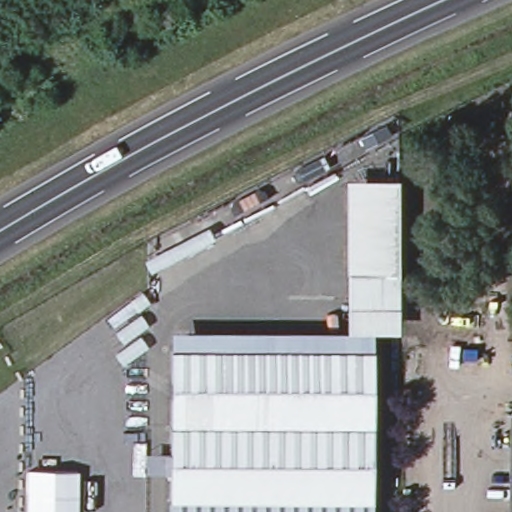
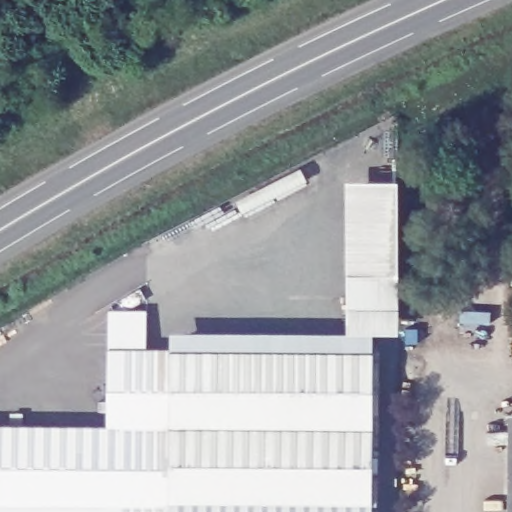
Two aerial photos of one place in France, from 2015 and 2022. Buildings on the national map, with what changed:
unchanged [(169,345),(170,328),(347,329),(347,181),(400,181),(401,333),(374,334),(372,346),(169,345)]
new [(106,426),(108,347),(108,310),(145,310),(147,350),(168,350),(168,512),(0,512),(0,426),(106,426)]
unchanged [(370,350),(370,512),(168,512),(168,350),(370,350)]
unchanged [(502,410),(512,410),(512,512),(502,512),(502,410)]

